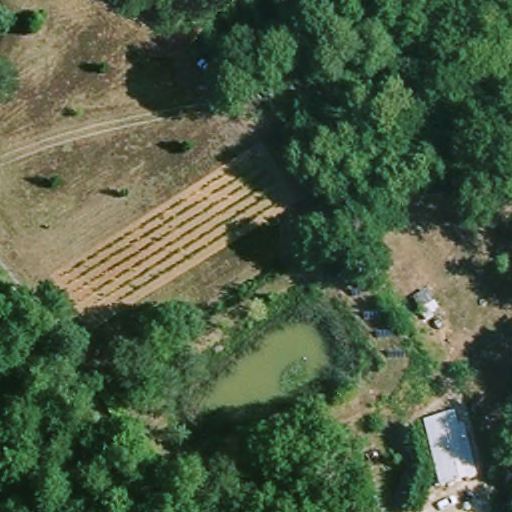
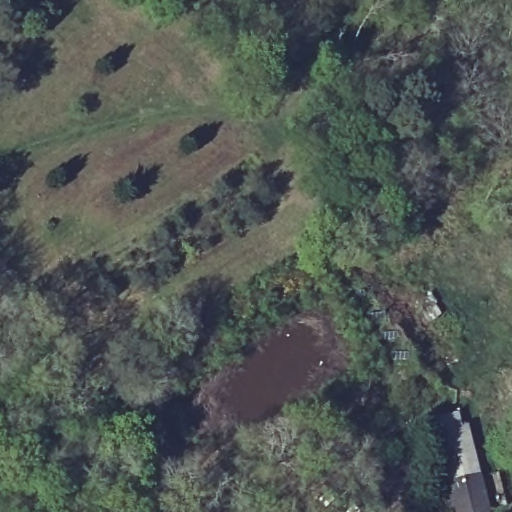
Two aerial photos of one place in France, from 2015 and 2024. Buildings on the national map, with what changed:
unchanged [(466,424),(477,473),(443,481),(431,432),(466,424)]

